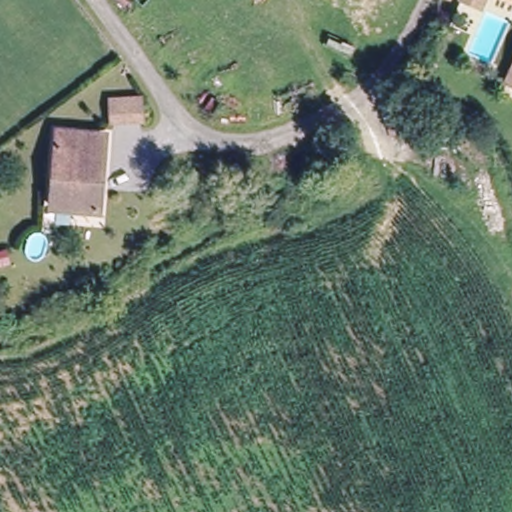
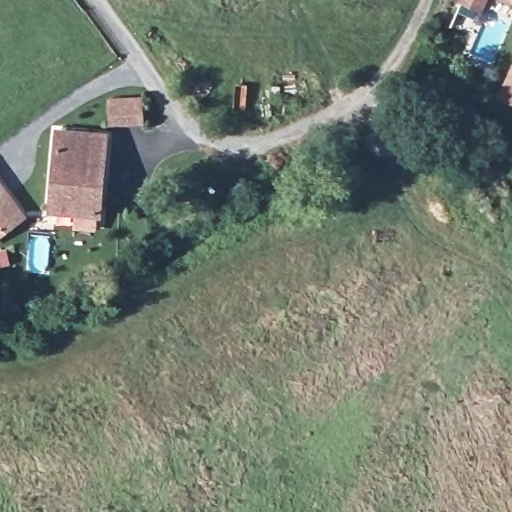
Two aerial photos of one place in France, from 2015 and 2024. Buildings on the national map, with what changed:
unchanged [(512,70),(512,89),(505,86),(512,70)]
unchanged [(109,104),(139,100),(140,125),(110,127),(109,104)]
unchanged [(100,214),(51,209),(61,134),(109,139),(100,214)]
new [(27,215),(0,236),(0,179),(27,215)]

